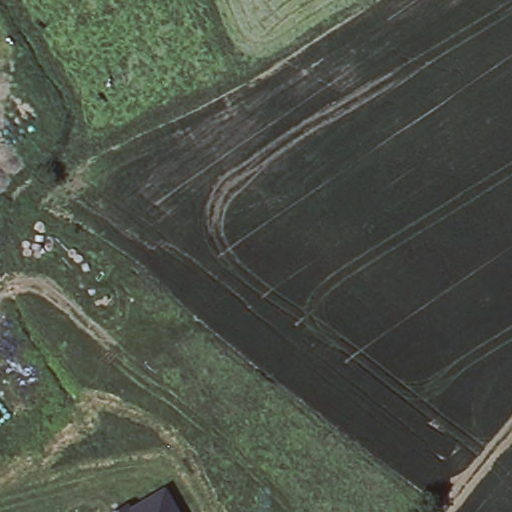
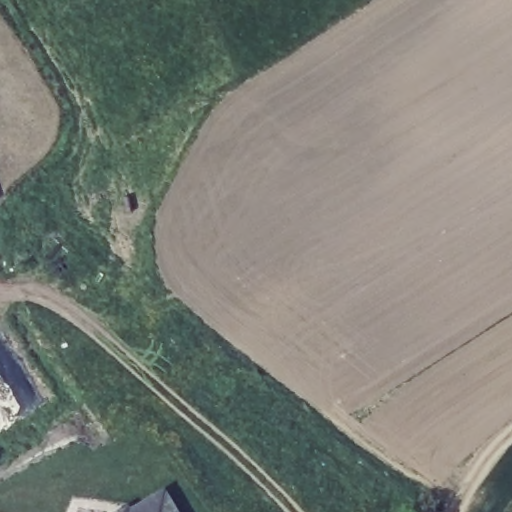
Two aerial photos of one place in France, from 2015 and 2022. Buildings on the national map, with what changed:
unchanged [(181,512),(113,512),(166,485),(181,512)]

